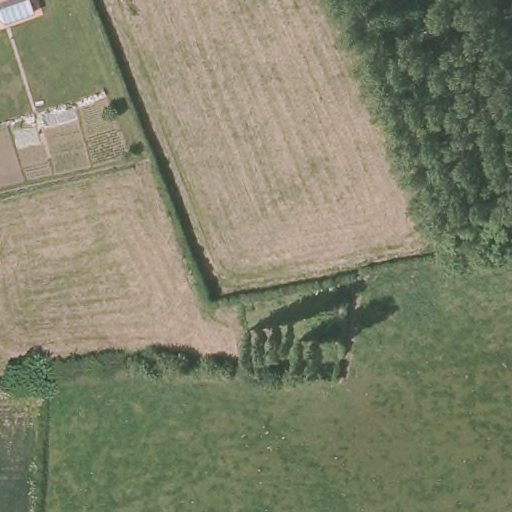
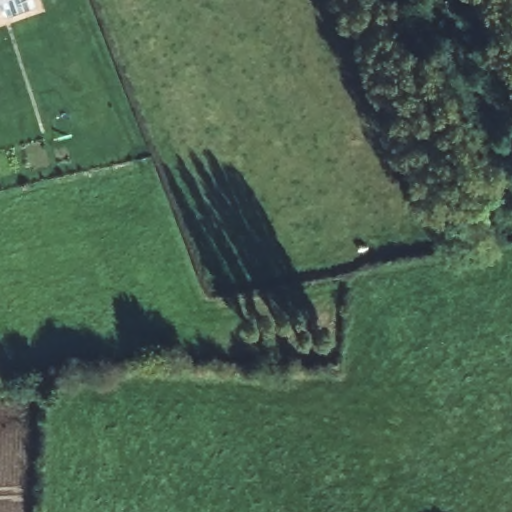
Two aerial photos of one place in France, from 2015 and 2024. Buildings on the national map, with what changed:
unchanged [(30,3),(1,20),(0,19),(0,0),(29,0),(30,3)]

